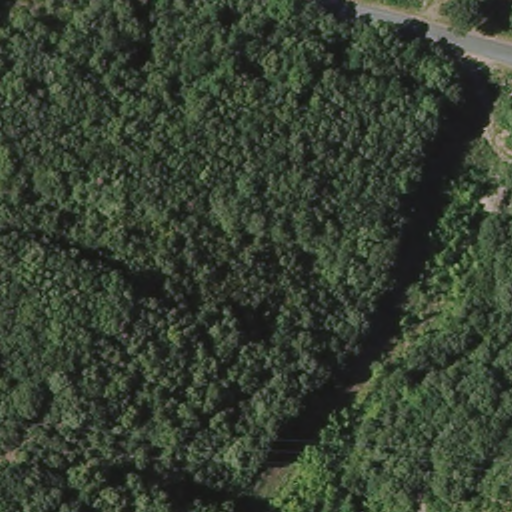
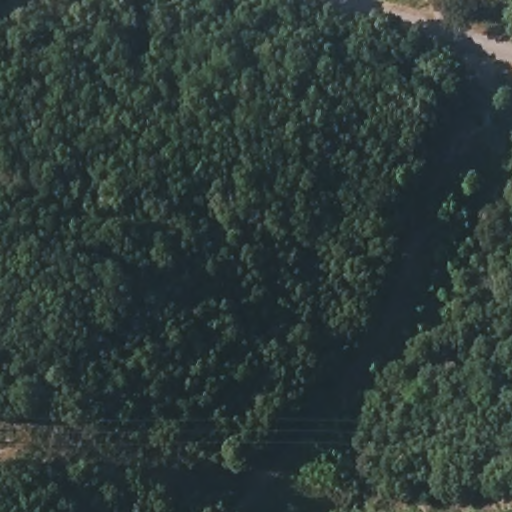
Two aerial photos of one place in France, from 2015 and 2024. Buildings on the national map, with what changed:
[]

